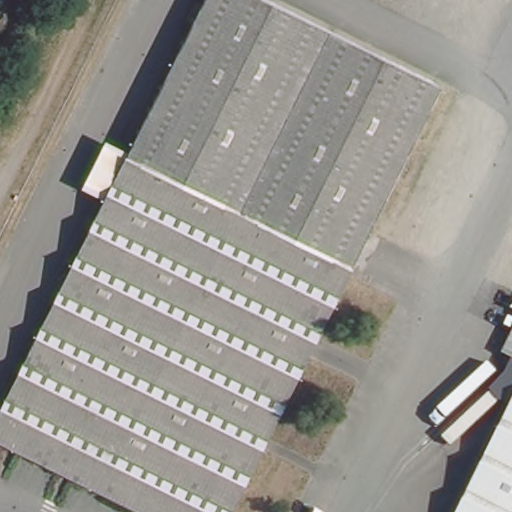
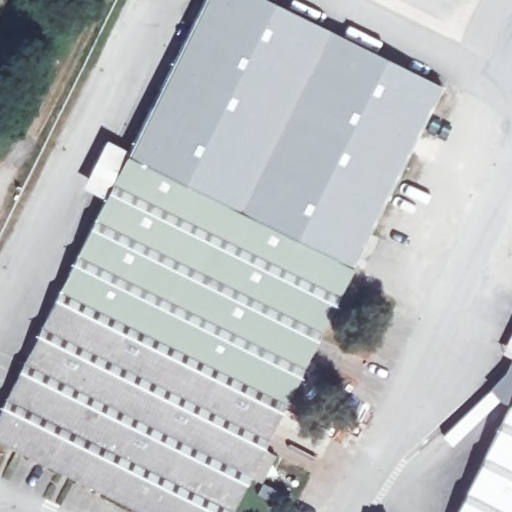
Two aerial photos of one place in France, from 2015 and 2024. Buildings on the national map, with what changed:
unchanged [(225,512),(136,512),(0,443),(0,407),(103,196),(85,189),(105,150),(122,158),(199,0),(258,0),(437,88),(225,512)]
unchanged [(453,512),(502,413),(509,400),(490,391),(507,358),(497,353),(512,323),(512,512),(453,512)]

